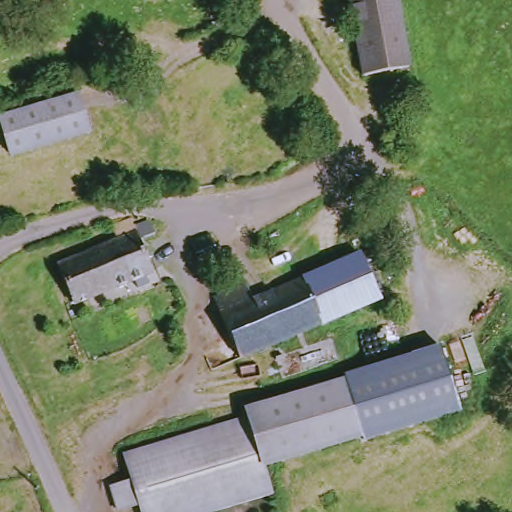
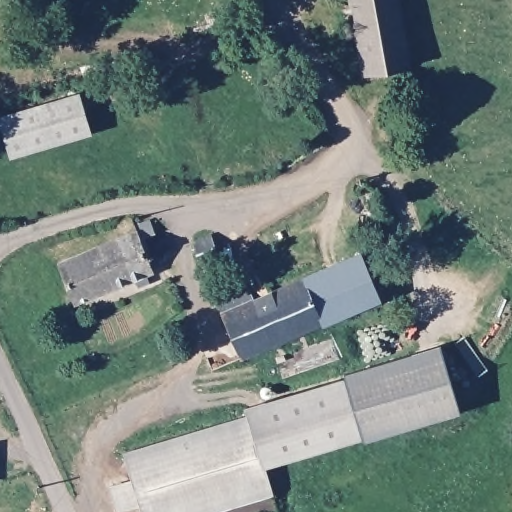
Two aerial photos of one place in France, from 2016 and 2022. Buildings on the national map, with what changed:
unchanged [(356,0),(408,0),(421,71),(372,81),(356,0)]
unchanged [(98,134),(23,160),(8,121),(83,95),(98,134)]
unchanged [(143,219),(158,222),(163,238),(151,243),(163,275),(83,308),(68,266),(128,241),(121,225),(143,219)]
unchanged [(223,255),(203,262),(193,237),(213,229),(223,255)]
unchanged [(248,362),(221,299),(253,286),(261,300),(366,258),(383,305),(248,362)]
unchanged [(274,500),(228,512),(145,512),(143,506),(121,510),(115,485),(136,481),(128,454),(254,421),(253,408),(349,383),(348,380),(446,355),(463,420),(364,445),(364,443),(267,468),(274,500)]

